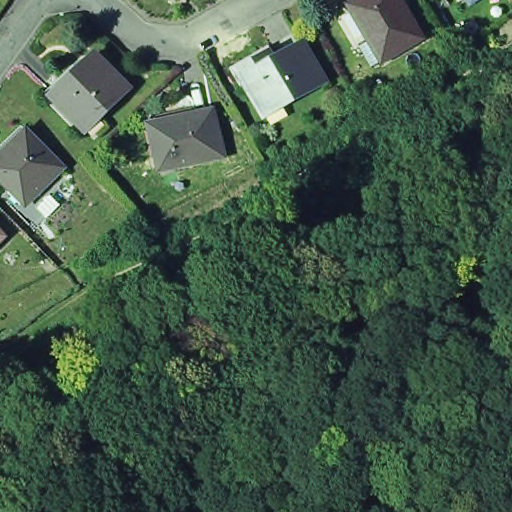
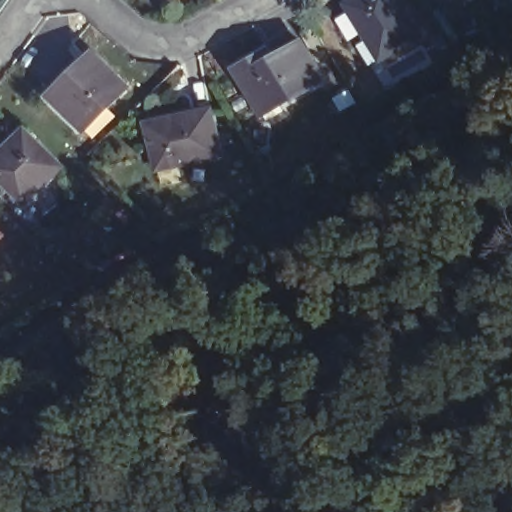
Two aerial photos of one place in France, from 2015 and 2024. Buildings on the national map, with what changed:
unchanged [(383,60),(372,41),(367,44),(347,5),(357,0),(400,0),(422,38),(383,60)]
unchanged [(245,70),(278,51),(282,58),(309,42),(331,80),(272,115),(245,70)]
unchanged [(52,100),(96,59),(130,94),(85,135),(52,100)]
unchanged [(151,130),(191,120),(192,124),(215,119),(225,161),(161,176),(151,130)]
unchanged [(0,179),(0,147),(22,127),(57,163),(20,199),(0,179)]
unchanged [(8,239),(0,247),(0,231),(8,239)]

